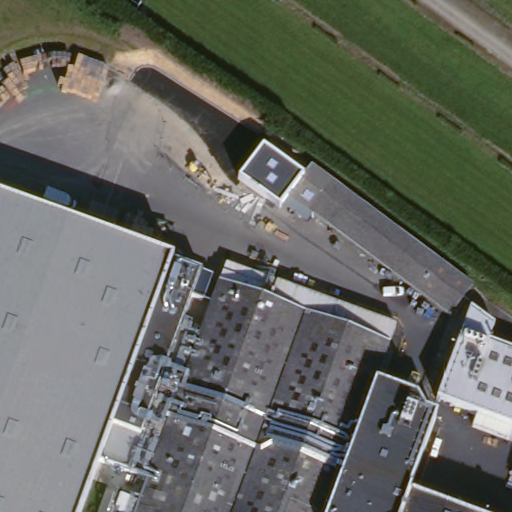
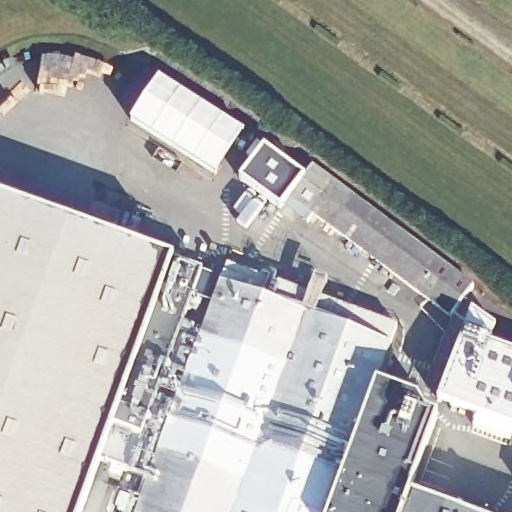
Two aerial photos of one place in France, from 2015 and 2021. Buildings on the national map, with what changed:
new [(158,83),(244,135),(217,179),(131,127),(158,83)]
unchanged [(280,210),(240,178),(263,147),(305,178),(304,180),(292,196),(280,210)]
unchanged [(333,181),(334,181),(476,287),(454,316),(321,218),(292,196),(313,166),(333,181)]
unchanged [(74,230),(77,220),(121,236),(117,245),(179,268),(119,434),(143,443),(167,451),(158,476),(154,487),(130,478),(106,470),(91,512),(0,512),(0,203),(74,230)]
unchanged [(158,476),(167,451),(226,289),(289,312),(292,313),(396,350),(356,461),(382,471),(371,502),(368,512),(145,512),(154,487),(158,476)]
unchanged [(468,311),(492,329),(490,347),(512,354),(512,433),(434,404),(468,311)]
unchanged [(439,512),(409,512),(413,502),(439,512)]

